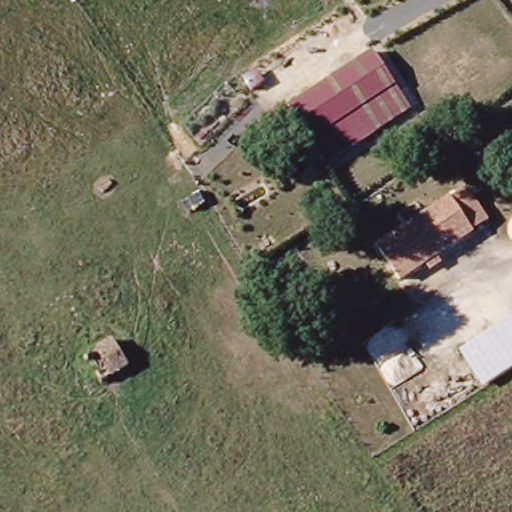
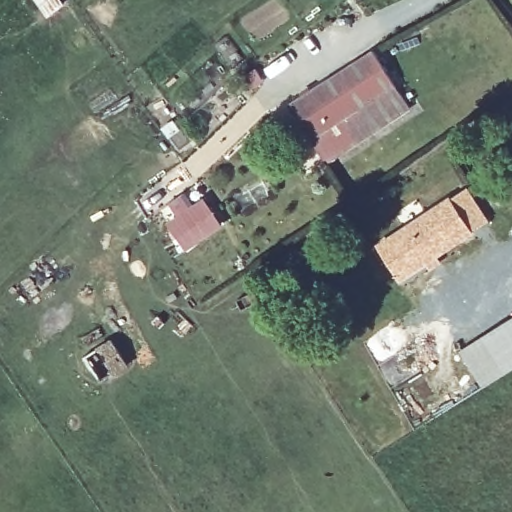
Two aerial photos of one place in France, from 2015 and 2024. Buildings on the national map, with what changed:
unchanged [(371,52),(405,106),(324,156),(291,105),(371,52)]
unchanged [(401,281),(377,245),(450,197),(451,200),(467,190),(488,223),(401,281)]
new [(174,216),(166,205),(183,192),(192,204),(202,196),(224,226),(185,252),(164,223),(174,216)]
unchanged [(461,351),(512,319),(512,369),(483,386),(461,351)]
unchanged [(99,377),(87,355),(112,341),(124,364),(99,377)]

